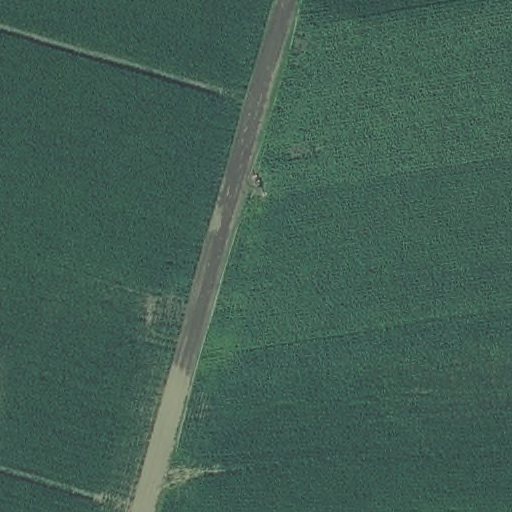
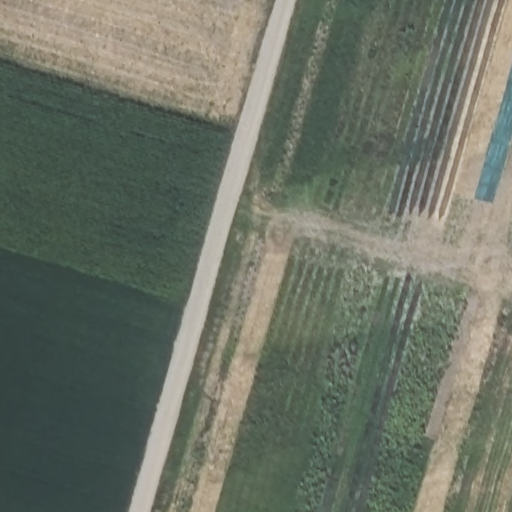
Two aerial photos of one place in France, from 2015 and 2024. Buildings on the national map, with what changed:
[]

